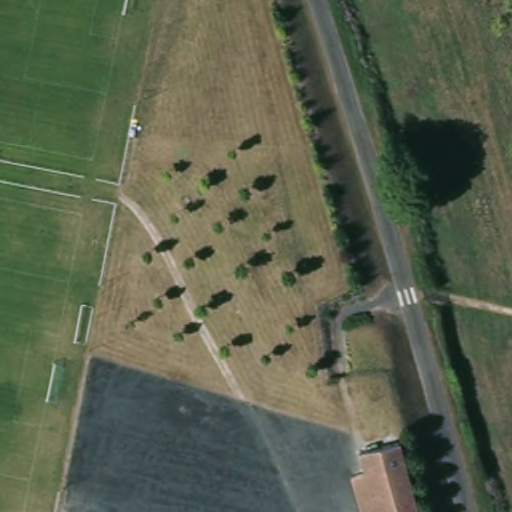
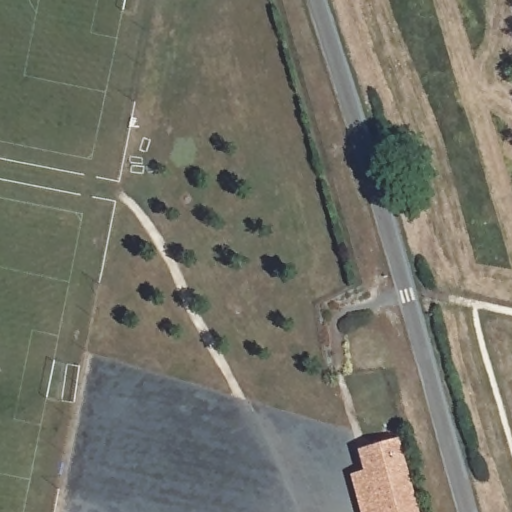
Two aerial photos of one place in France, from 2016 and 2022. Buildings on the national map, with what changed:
unchanged [(356,449),(396,438),(417,512),(373,512),(362,471),(356,449)]
unchanged [(360,512),(349,474),(362,471),(373,512),(360,512)]

